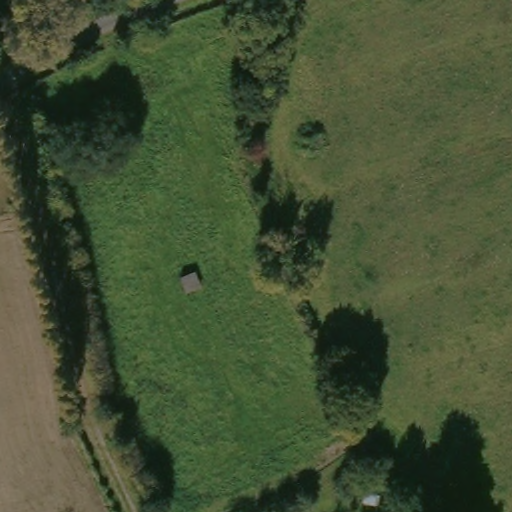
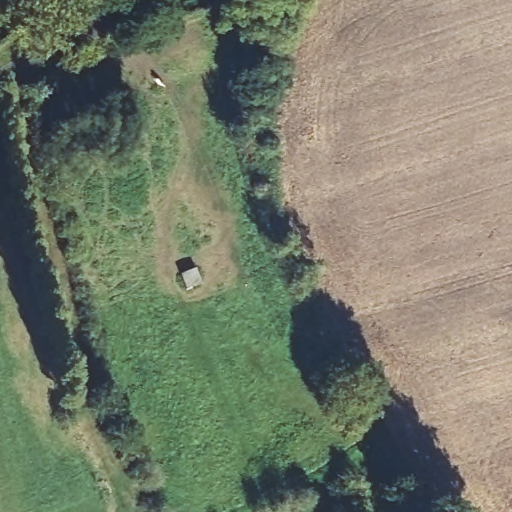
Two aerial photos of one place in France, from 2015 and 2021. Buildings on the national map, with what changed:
[]

